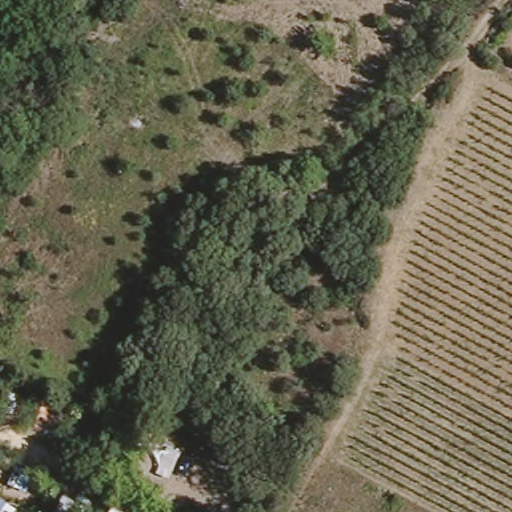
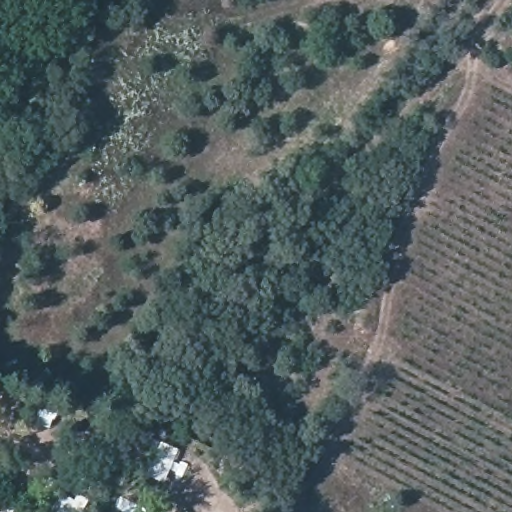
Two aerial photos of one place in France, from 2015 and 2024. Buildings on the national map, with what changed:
unchanged [(26,132),(39,112),(54,123),(42,143),(26,132)]

